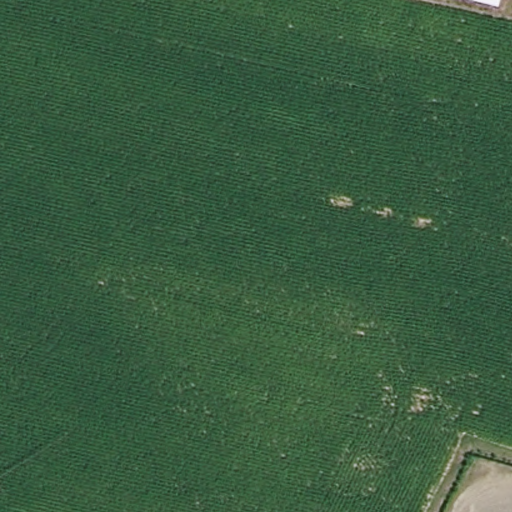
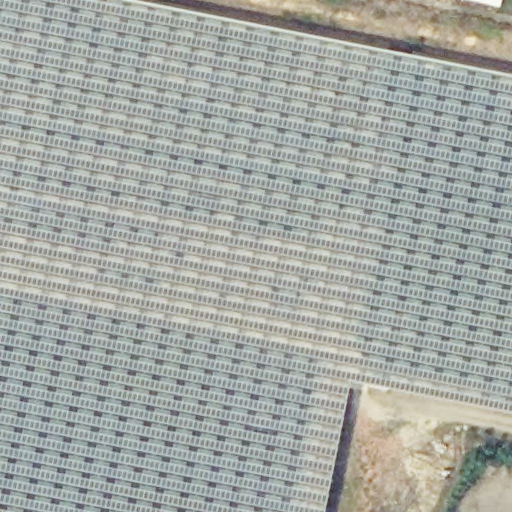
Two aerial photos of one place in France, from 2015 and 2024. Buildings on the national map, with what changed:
new [(348,380),(322,512),(0,512),(0,0),(120,0),(512,78),(512,414),(348,380)]
unchanged [(490,0),(505,0),(504,3),(490,0)]

